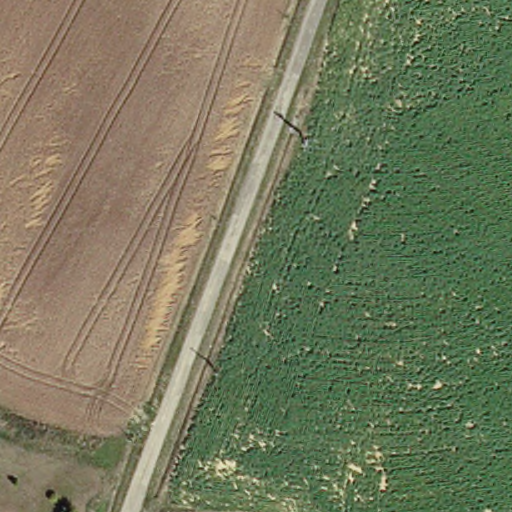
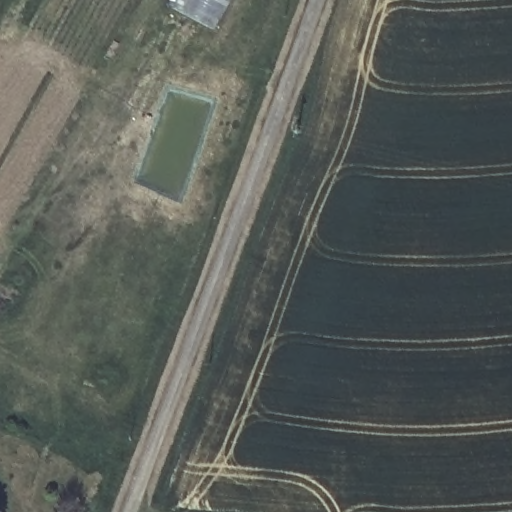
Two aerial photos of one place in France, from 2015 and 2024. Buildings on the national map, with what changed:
new [(215,29),(176,9),(181,0),(231,0),(215,29)]

